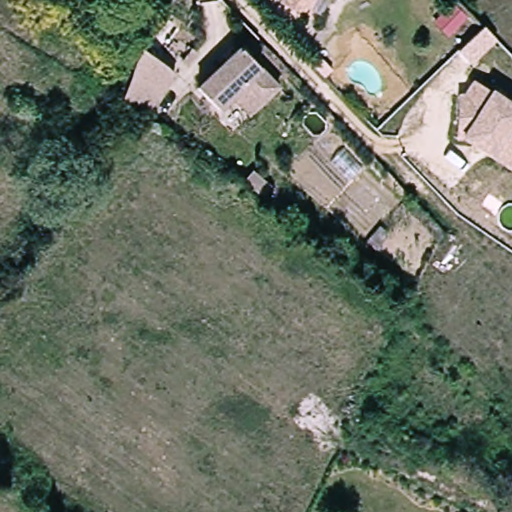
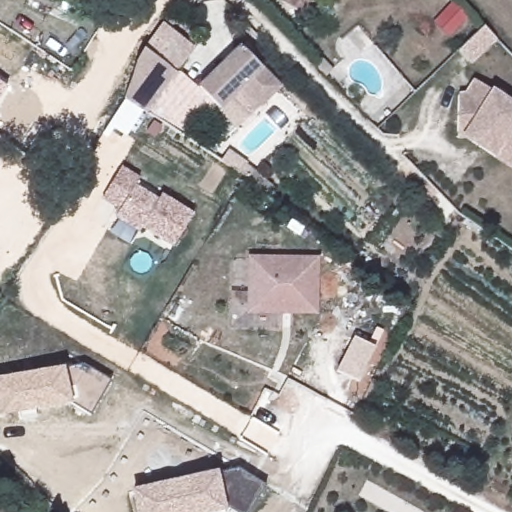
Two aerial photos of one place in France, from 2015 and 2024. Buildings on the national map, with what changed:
unchanged [(303,16),(282,4),(285,0),(312,0),(303,16)]
new [(482,23),(494,36),(468,60),(456,47),(482,23)]
unchanged [(152,116),(125,100),(132,59),(146,44),(182,72),(152,116)]
unchanged [(235,94),(220,108),(200,88),(239,51),(278,86),(260,105),(252,112),(235,94)]
unchanged [(478,78),(512,100),(512,151),(501,144),(503,141),(474,122),(485,104),(468,93),(478,78)]
new [(0,98),(0,83),(7,88),(0,98)]
unchanged [(485,104),(474,122),(503,141),(501,144),(512,151),(512,166),(467,136),(458,135),(460,92),(468,93),(485,104)]
new [(120,168),(137,179),(133,186),(157,200),(160,195),(192,215),(172,246),(142,226),(138,230),(115,215),(120,208),(101,197),(120,168)]
new [(249,259),(317,260),(317,314),(247,314),(249,259)]
new [(90,416),(70,405),(35,410),(36,415),(20,417),(19,413),(0,416),(0,377),(64,366),(65,368),(83,364),(112,380),(90,416)]
new [(180,481),(215,473),(238,468),(266,486),(249,512),(234,512),(223,505),(191,512),(139,512),(136,499),(182,488),(180,481)]

